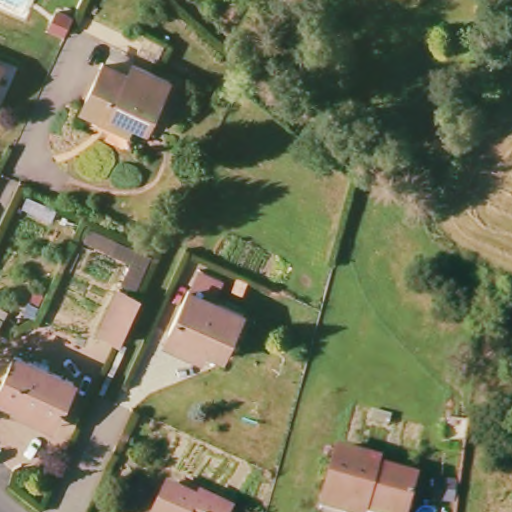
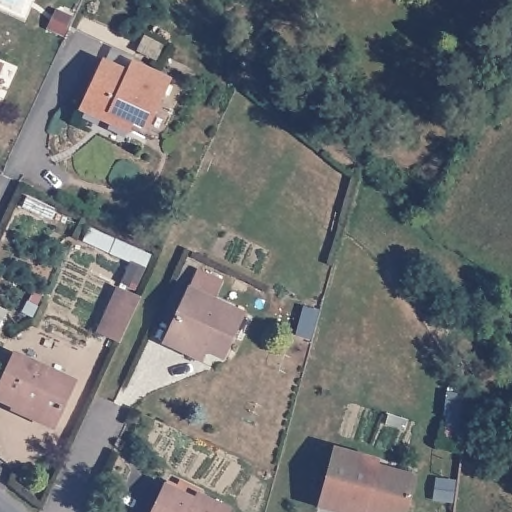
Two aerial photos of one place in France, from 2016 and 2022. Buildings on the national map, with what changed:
unchanged [(4,68),(0,76),(0,66),(4,68)]
unchanged [(124,127),(120,136),(74,116),(96,67),(122,80),(128,71),(165,86),(143,135),(124,127)]
unchanged [(133,298),(140,302),(117,346),(93,337),(116,289),(130,262),(84,241),(90,228),(150,260),(133,298)]
unchanged [(168,332),(197,271),(223,283),(214,302),(243,315),(222,357),(168,332)]
unchanged [(26,411),(23,417),(0,407),(0,397),(16,361),(76,386),(60,425),(26,411)]
unchanged [(320,507),(324,487),(335,450),(376,461),(376,467),(416,479),(406,512),(367,512),(366,512),(365,512),(358,512),(347,509),(346,512),(337,512),(320,507)]
unchanged [(167,491),(197,505),(202,496),(232,510),(231,512),(156,512),(167,491)]

